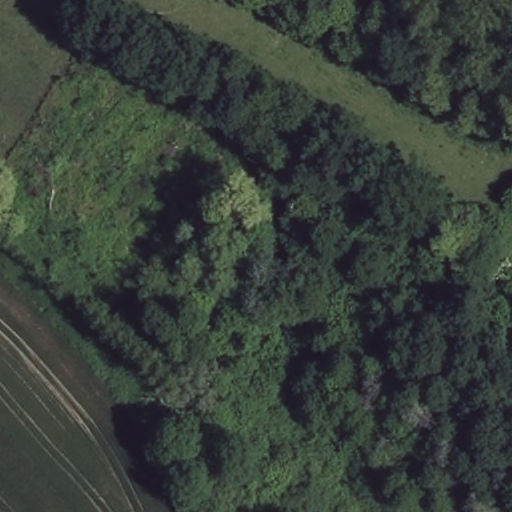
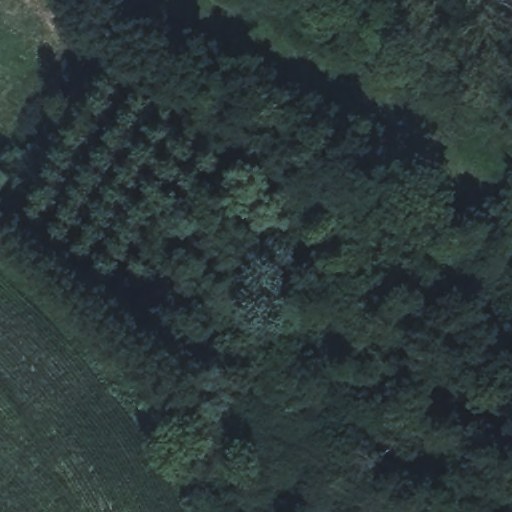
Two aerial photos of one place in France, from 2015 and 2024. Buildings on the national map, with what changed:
[]

